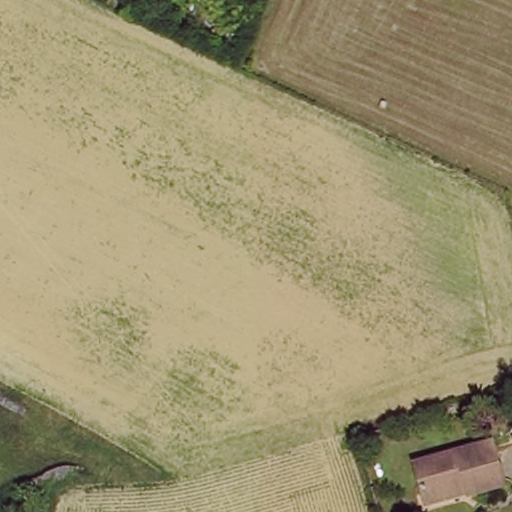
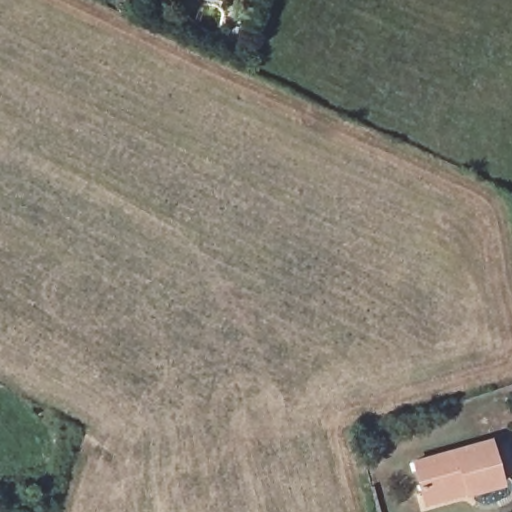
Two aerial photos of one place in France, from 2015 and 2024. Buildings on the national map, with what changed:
unchanged [(425,499),(414,462),(490,442),(504,487),(472,495),(427,507),(425,499)]

